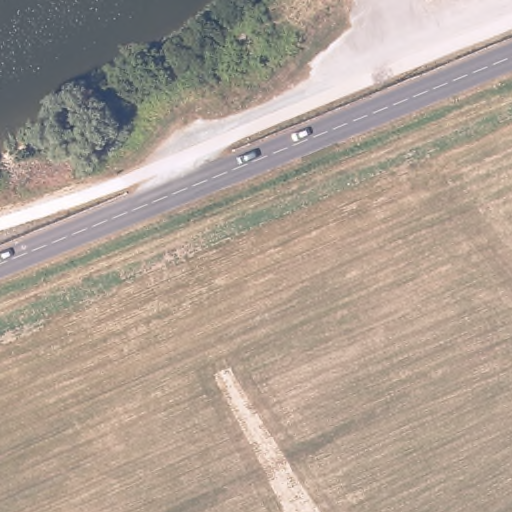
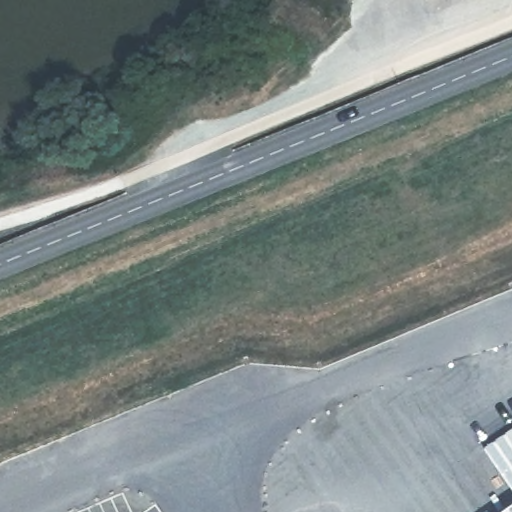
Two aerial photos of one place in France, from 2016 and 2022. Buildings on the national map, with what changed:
new [(512,428),(512,491),(483,448),(512,428)]
new [(512,512),(500,512),(512,504),(512,512)]

